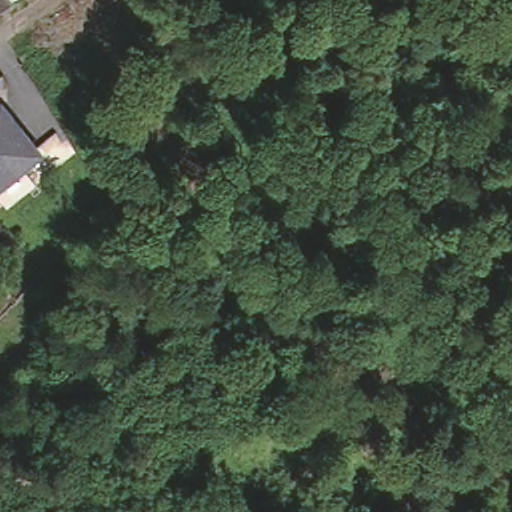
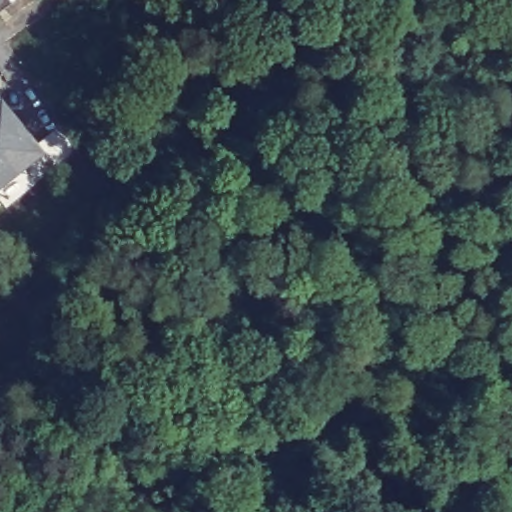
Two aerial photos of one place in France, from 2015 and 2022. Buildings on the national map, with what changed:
unchanged [(0,11),(0,0),(8,0),(10,3),(0,11)]
unchanged [(12,132),(25,149),(12,161),(15,166),(0,179),(0,113),(15,130),(12,132)]

